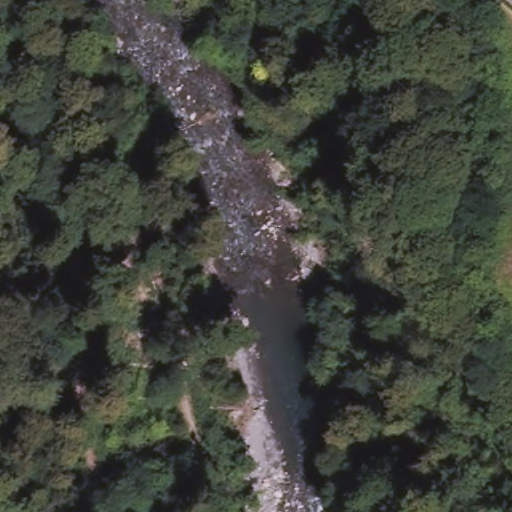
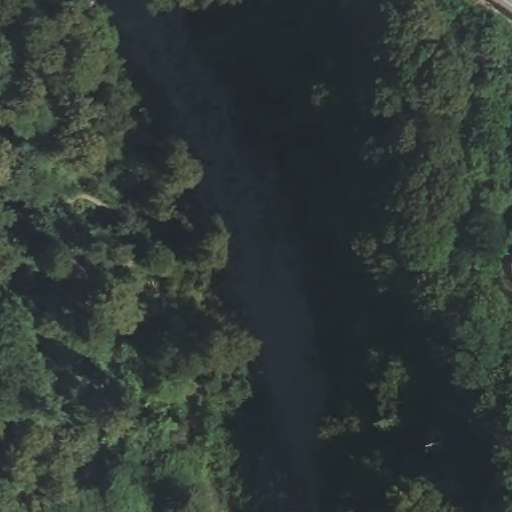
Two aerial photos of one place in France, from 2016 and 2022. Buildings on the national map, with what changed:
[]

